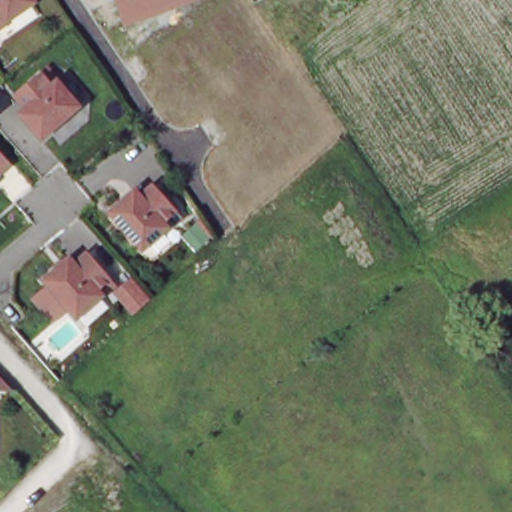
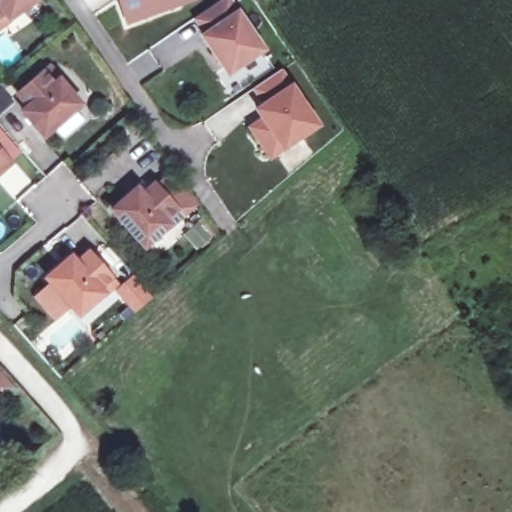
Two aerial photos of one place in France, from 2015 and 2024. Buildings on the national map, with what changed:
unchanged [(34,0),(9,18),(0,24),(0,0),(34,0)]
unchanged [(124,26),(115,0),(202,0),(124,26)]
new [(209,53),(198,35),(191,19),(221,0),(231,0),(236,9),(264,51),(225,77),(217,65),(214,67),(206,56),(209,53)]
unchanged [(38,72),(47,64),(57,76),(53,79),(73,103),(38,134),(16,110),(23,105),(13,93),(38,72)]
new [(282,69),(291,83),(319,127),(281,152),(269,161),(247,127),(258,119),(252,111),(259,105),(250,90),(282,69)]
unchanged [(0,168),(0,152),(8,161),(0,168)]
unchanged [(169,228),(166,225),(142,245),(111,209),(134,188),(141,195),(152,185),(173,209),(181,218),(169,228)]
unchanged [(103,296),(99,292),(75,313),(44,277),(68,256),(74,262),(86,252),(107,276),(114,285),(103,296)]
unchanged [(0,377),(9,386),(0,386),(0,377)]

